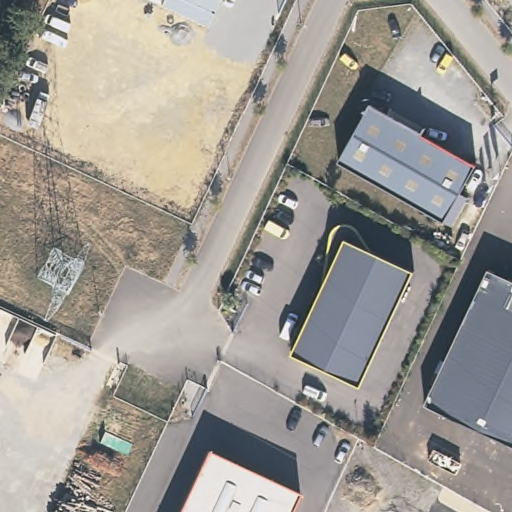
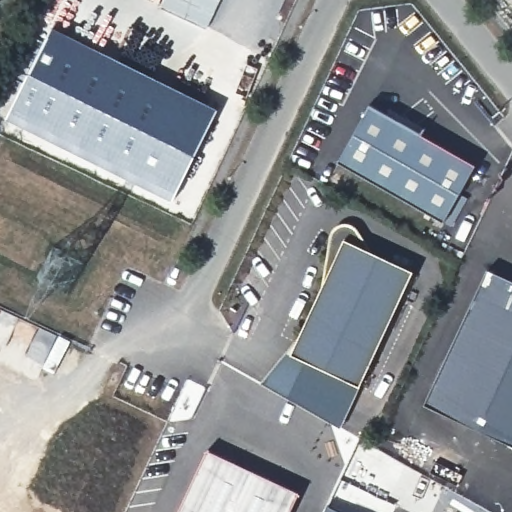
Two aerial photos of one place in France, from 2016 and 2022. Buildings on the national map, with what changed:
new [(208,27),(162,6),(164,0),(220,0),(208,27)]
new [(218,108),(172,200),(8,117),(54,26),(218,108)]
unchanged [(391,106),(426,126),(422,132),(477,164),(445,220),(338,159),(370,102),(387,112),(391,106)]
unchanged [(361,383),(292,351),(323,285),(334,228),(337,220),(345,216),(353,218),(358,225),(373,249),(415,268),(361,383)]
unchanged [(496,270),(494,272),(508,278),(508,276),(512,277),(512,443),(425,402),(488,267),(496,270)]
new [(342,427),(261,383),(298,337),(292,351),(361,383),(342,427)]
unchanged [(301,490),(291,512),(177,512),(208,447),(301,490)]

